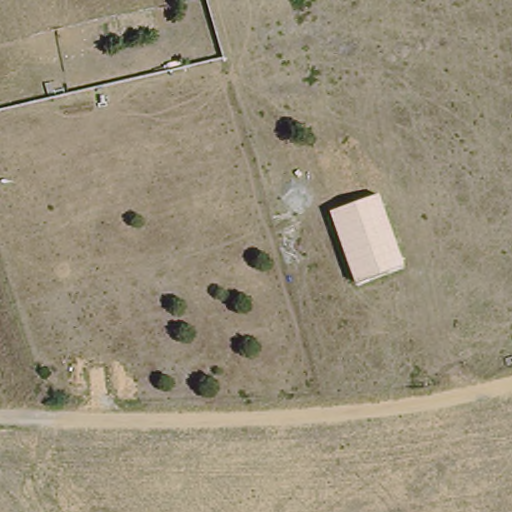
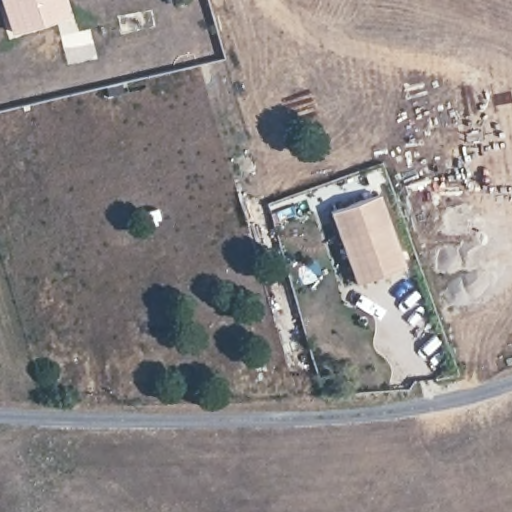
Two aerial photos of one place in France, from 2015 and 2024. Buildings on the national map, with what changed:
new [(12,34),(1,0),(65,0),(70,14),(12,34)]
unchanged [(331,211),(378,194),(403,268),(356,285),(331,211)]

